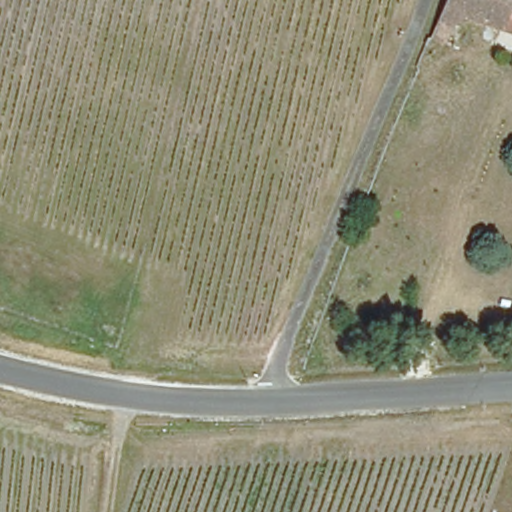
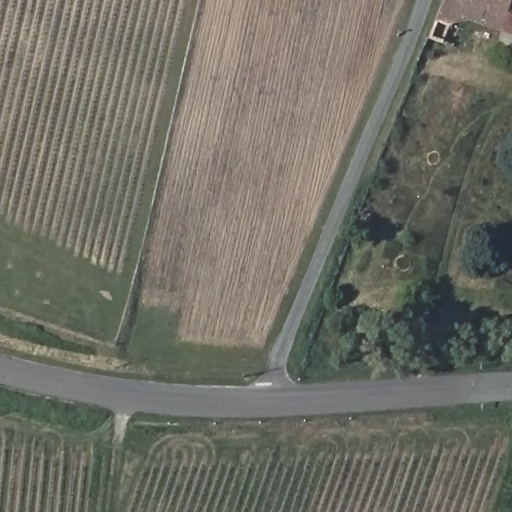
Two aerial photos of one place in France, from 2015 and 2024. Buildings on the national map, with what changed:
unchanged [(449,0),(512,0),(512,32),(486,23),(457,30),(451,46),(434,41),(449,0)]

